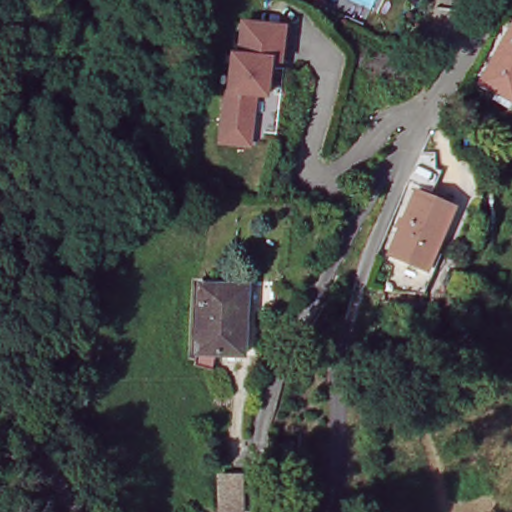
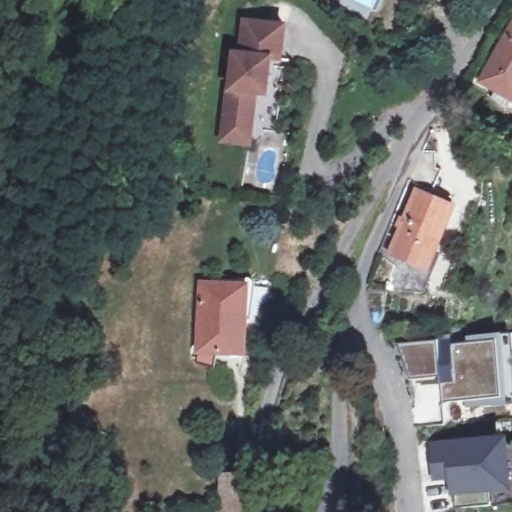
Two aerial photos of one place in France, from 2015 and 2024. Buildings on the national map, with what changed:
unchanged [(222,129),(227,92),(229,92),(234,57),(240,58),(244,25),(284,30),(280,54),(279,64),(269,63),(268,72),(264,98),(253,97),(248,133),(246,147),(220,143),(222,129)]
unchanged [(484,92),(512,45),(512,108),(484,92)]
unchanged [(430,268),(392,253),(421,188),(456,203),(430,268)]
unchanged [(245,348),(193,346),(194,276),(243,277),(245,348)]
new [(447,341),(496,339),(502,396),(442,401),(439,375),(410,378),(399,344),(447,341)]
new [(508,436),(512,480),(512,492),(450,495),(449,481),(433,482),(429,444),(508,436)]
new [(233,477),(234,512),(215,512),(216,477),(233,477)]

